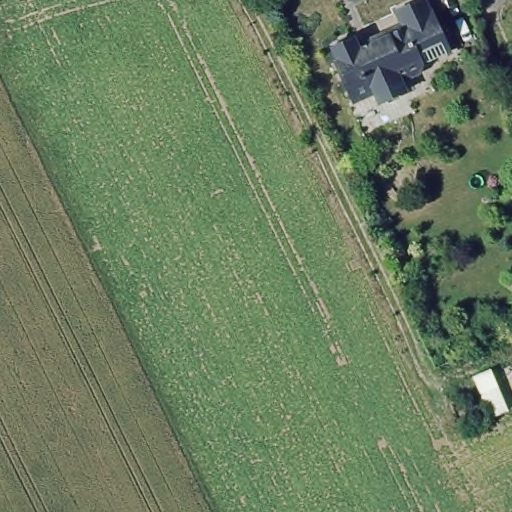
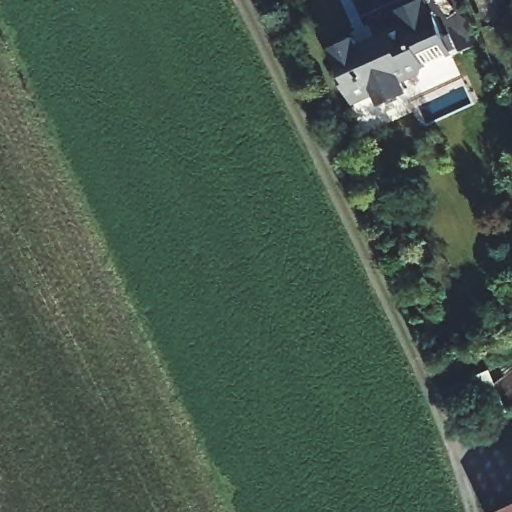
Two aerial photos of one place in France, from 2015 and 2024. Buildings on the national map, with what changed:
unchanged [(350,40),(351,43),(358,41),(363,51),(378,44),(380,37),(406,23),(399,10),(419,0),(426,0),(432,11),(435,10),(453,47),(428,61),(426,67),(406,78),(411,89),(389,101),(383,91),(368,100),(367,99),(344,48),(343,46),(348,41),(350,40)]
new [(512,504),(512,512),(495,512),(512,504)]

